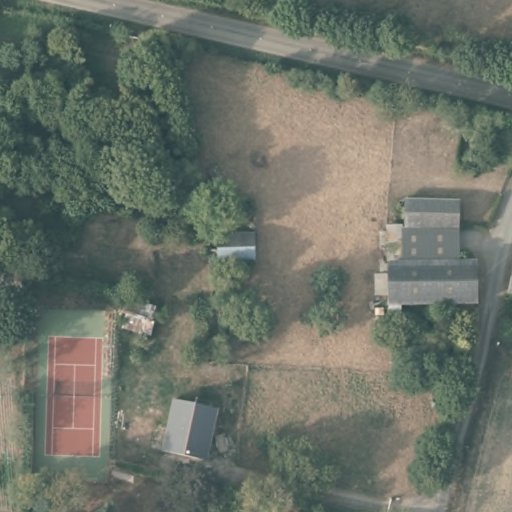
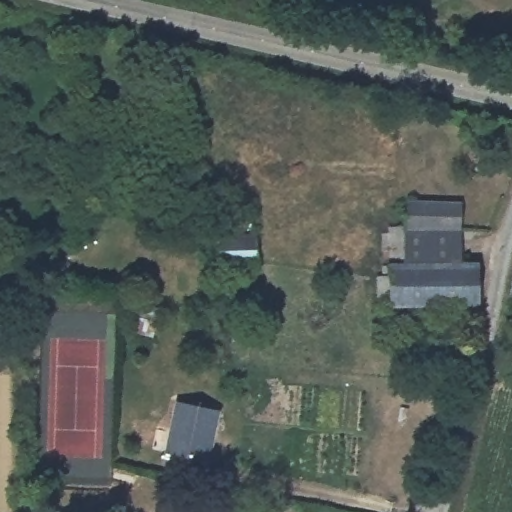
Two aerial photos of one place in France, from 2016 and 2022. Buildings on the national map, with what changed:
unchanged [(460,231),(407,231),(408,204),(459,204),(460,231)]
unchanged [(390,232),(460,232),(460,265),(390,267),(390,232)]
unchanged [(222,262),(221,236),(258,236),(259,261),(222,262)]
unchanged [(391,307),(390,267),(460,265),(480,264),(481,306),(391,307)]
unchanged [(512,291),(512,296),(511,296),(512,291)]
unchanged [(210,460),(167,451),(179,399),(221,408),(210,460)]

